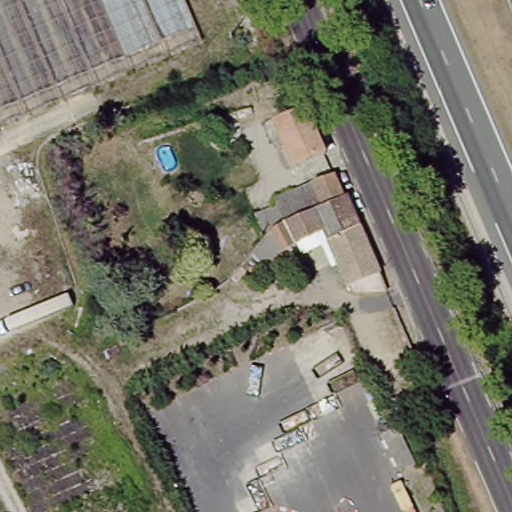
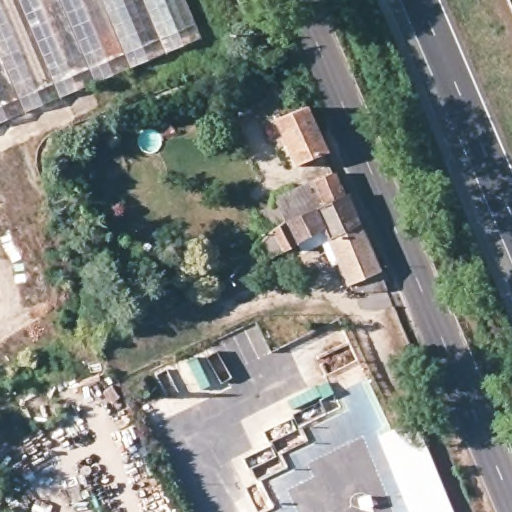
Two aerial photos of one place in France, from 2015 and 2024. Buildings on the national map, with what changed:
unchanged [(0,118),(0,0),(186,0),(199,29),(0,118)]
unchanged [(294,170),(275,129),(268,130),(262,114),(279,107),(284,120),(303,111),(322,158),(294,170)]
unchanged [(328,176),(336,198),(284,221),(273,193),(303,181),(328,176)]
unchanged [(338,282),(316,236),(243,266),(236,251),(254,234),(284,221),(336,198),(340,195),(370,268),(380,291),(346,290),(338,282)]
new [(453,512),(408,512),(377,436),(415,421),(453,512)]
demolished [(410,467),(394,474),(379,436),(395,430),(410,467)]

